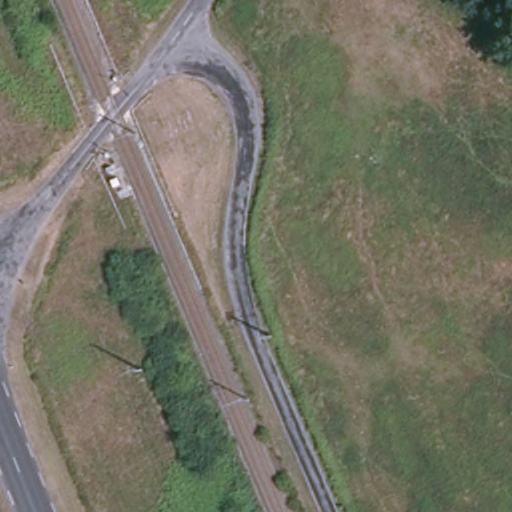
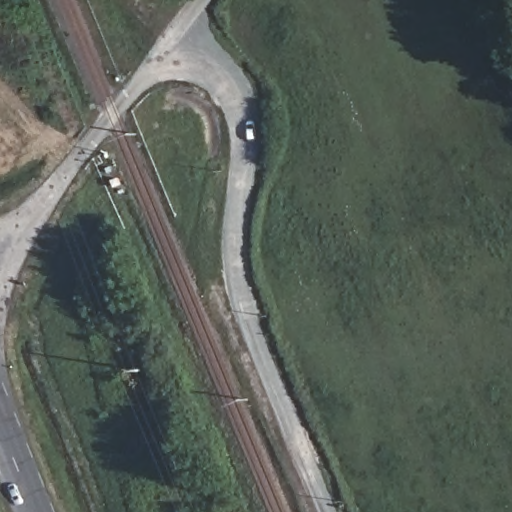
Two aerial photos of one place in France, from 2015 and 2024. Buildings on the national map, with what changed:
[]

